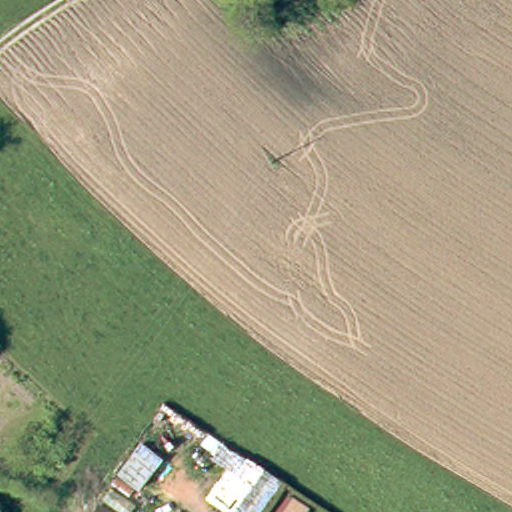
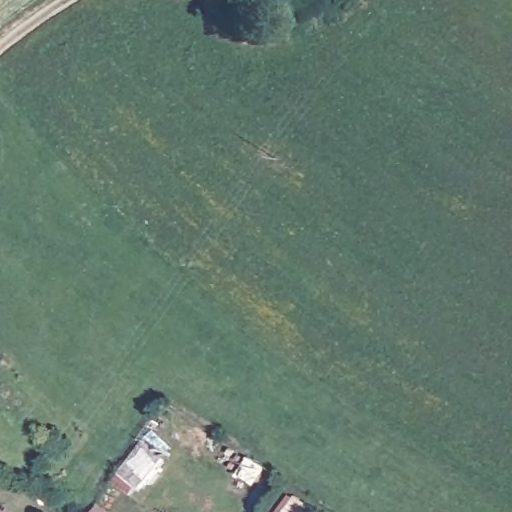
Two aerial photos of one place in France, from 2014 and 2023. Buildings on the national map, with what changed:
unchanged [(95,512),(99,506),(107,512),(95,512)]

